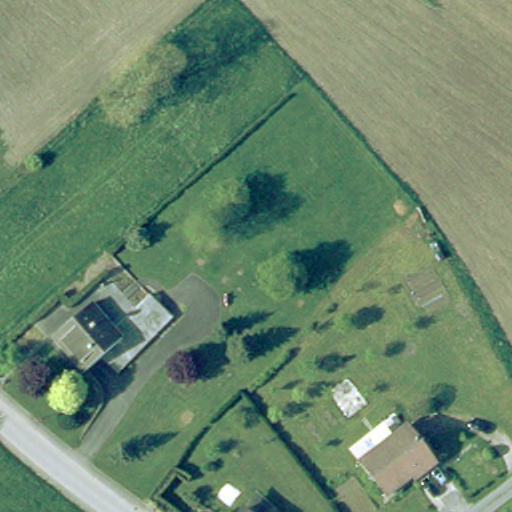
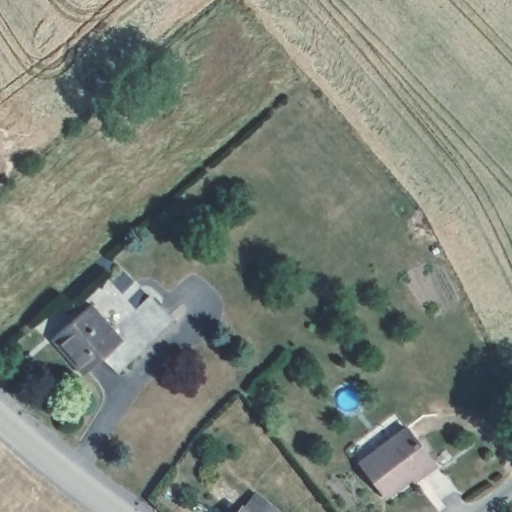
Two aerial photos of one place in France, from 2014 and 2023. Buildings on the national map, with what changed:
unchanged [(147,290),(167,315),(113,368),(97,352),(118,333),(109,324),(142,295),(147,290)]
unchanged [(86,299),(109,324),(118,333),(97,352),(79,368),(49,333),(86,299)]
unchanged [(436,456),(414,474),(411,470),(387,489),(361,457),(407,421),(436,456)]
unchanged [(239,512),(251,497),(269,512),(239,512)]

